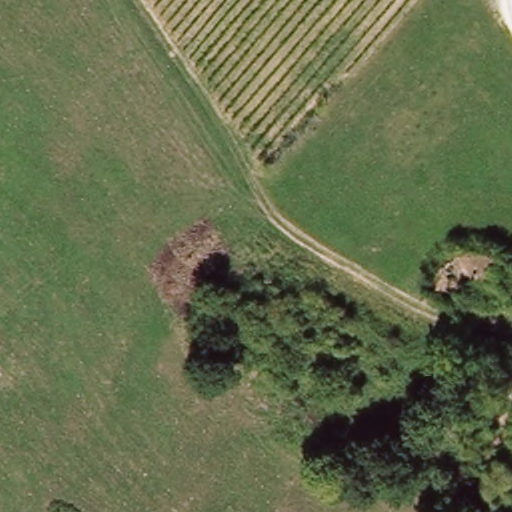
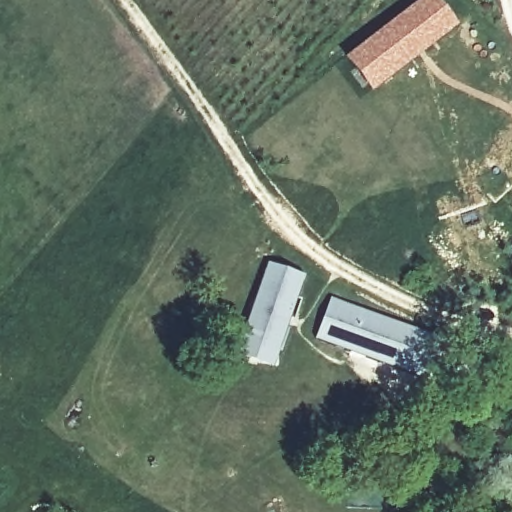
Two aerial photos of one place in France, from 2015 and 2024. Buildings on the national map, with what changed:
new [(354,50),(418,0),(440,0),(457,24),(379,85),(354,50)]
new [(271,262),(304,275),(276,352),(271,365),(237,353),(242,339),(271,262)]
demolished [(345,287),(369,296),(363,316),(411,337),(386,403),(312,367),(311,367),(345,287)]
new [(331,297),(434,334),(419,376),(315,338),(331,297)]

